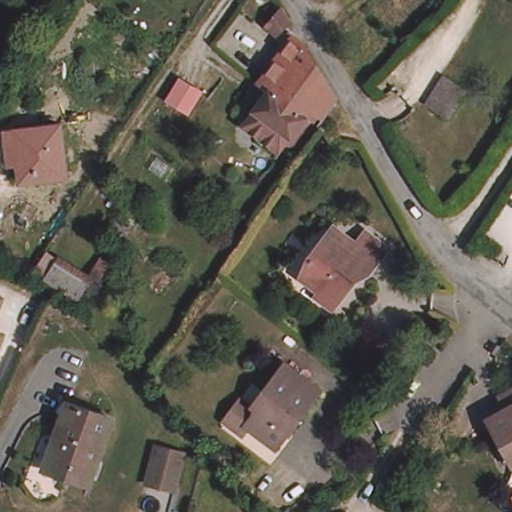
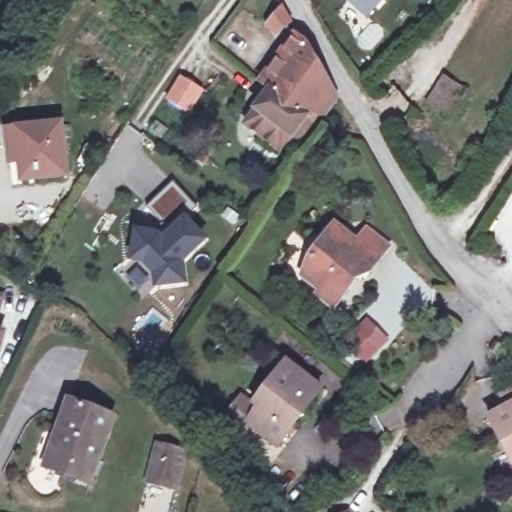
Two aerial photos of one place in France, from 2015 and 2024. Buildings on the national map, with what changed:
unchanged [(265,20),(278,0),(280,0),(283,5),(288,13),(278,29),(265,20)]
new [(351,0),(386,0),(370,19),(351,0)]
unchanged [(292,136),(282,150),(245,123),(255,110),(253,108),(303,40),(340,97),(323,124),(320,127),(307,146),(292,136)]
unchanged [(475,86),(455,114),(434,100),(452,71),(475,86)]
unchanged [(206,91),(190,116),(165,102),(180,76),(206,91)]
unchanged [(336,140),(327,125),(337,119),(340,124),(338,125),(345,135),(336,140)]
unchanged [(61,171),(15,177),(13,159),(5,160),(1,126),(10,125),(55,120),(61,171)]
new [(132,230),(159,234),(163,237),(169,231),(148,208),(174,185),(194,209),(186,217),(208,240),(185,262),(187,285),(154,290),(153,275),(142,265),(130,263),(132,230)]
unchanged [(360,226),(384,244),(364,270),(357,265),(327,305),(310,293),(315,288),(296,275),(307,260),(303,256),(318,236),(328,224),(334,227),(350,240),(360,226)]
new [(390,340),(365,365),(342,343),(367,317),(390,340)]
unchanged [(1,327),(0,330),(0,327),(1,327)]
unchanged [(495,335),(502,339),(495,348),(488,343),(495,335)]
unchanged [(230,415),(245,395),(254,402),(265,387),(285,360),(321,387),(278,445),(248,422),(246,427),(230,415)]
unchanged [(506,452),(498,437),(477,448),(474,442),(495,431),(489,420),(508,410),(502,398),(512,394),(512,452),(511,450),(506,452)]
unchanged [(112,415),(87,481),(45,465),(70,398),(112,415)]
unchanged [(183,450),(174,485),(147,478),(156,442),(183,450)]
unchanged [(341,509),(346,512),(336,512),(341,509)]

